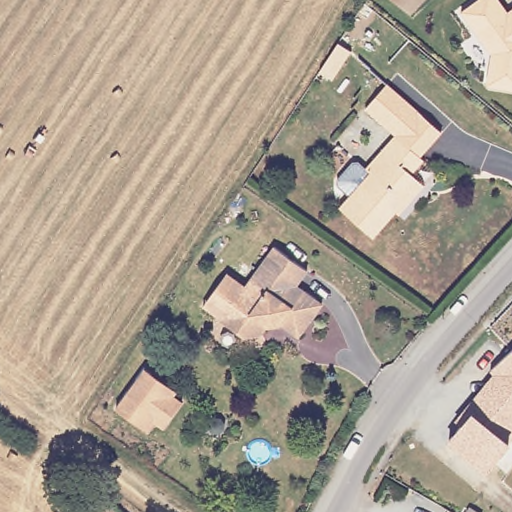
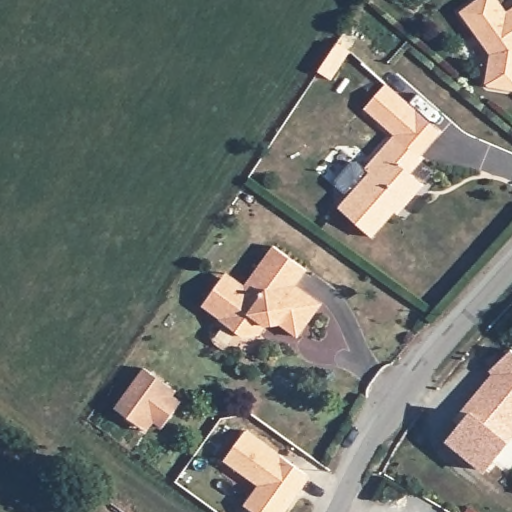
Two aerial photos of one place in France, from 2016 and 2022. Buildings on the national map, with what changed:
unchanged [(496,0),(506,14),(512,10),(512,90),(486,86),(491,55),(460,13),(479,0),(496,0)]
unchanged [(352,51),(334,79),(321,70),(340,43),(352,51)]
unchanged [(415,176),(427,186),(410,205),(406,203),(374,238),(342,207),(373,173),(368,168),(397,136),(368,109),(390,85),(425,116),(443,133),(421,157),(426,161),(415,176)]
unchanged [(310,271),(303,283),(328,302),(306,335),(291,325),(270,327),(262,336),(247,338),(226,321),(279,248),(310,271)]
unchanged [(512,442),(508,446),(485,473),(447,442),(470,415),(463,410),(491,376),(487,371),(511,351),(512,352),(512,442)]
unchanged [(172,385),(169,390),(183,400),(164,426),(150,416),(143,426),(117,407),(146,367),(172,385)]
new [(259,486),(223,461),(245,429),(311,477),(286,512),(254,512),(243,505),(259,486)]

